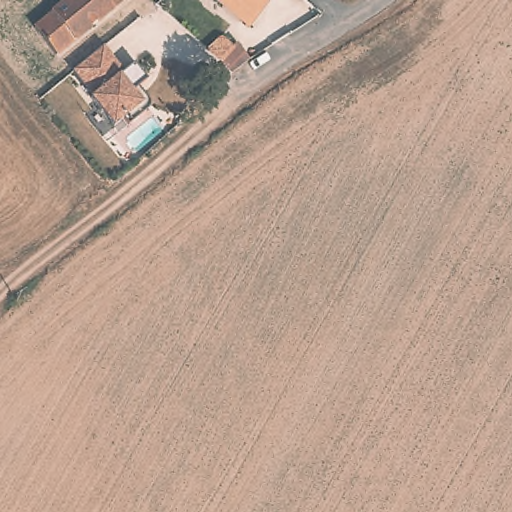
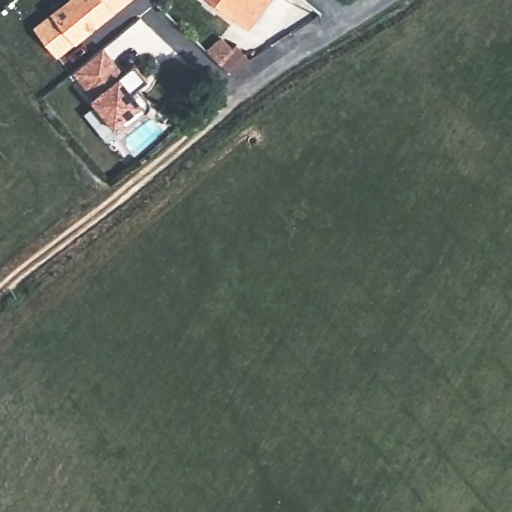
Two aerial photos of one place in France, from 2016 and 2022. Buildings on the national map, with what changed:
unchanged [(66,0),(123,0),(55,55),(33,26),(66,0)]
unchanged [(277,36),(266,27),(273,20),(263,14),(252,30),(211,0),(305,0),(307,1),(277,36)]
unchanged [(199,45),(216,30),(226,41),(232,36),(248,55),(222,73),(199,45)]
unchanged [(105,47),(123,73),(134,66),(142,81),(134,90),(143,103),(112,130),(72,73),(105,47)]

